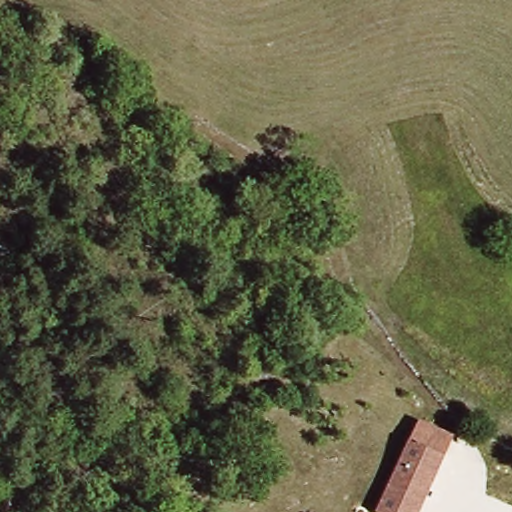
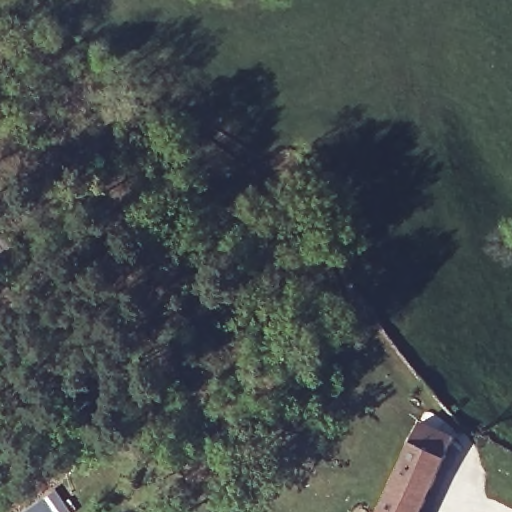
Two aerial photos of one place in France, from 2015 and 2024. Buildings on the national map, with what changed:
unchanged [(423,512),(385,512),(432,411),(464,425),(423,512)]
new [(55,488),(72,512),(19,512),(55,488)]

